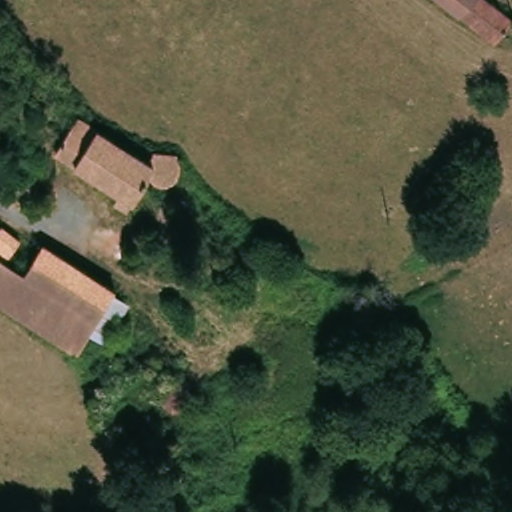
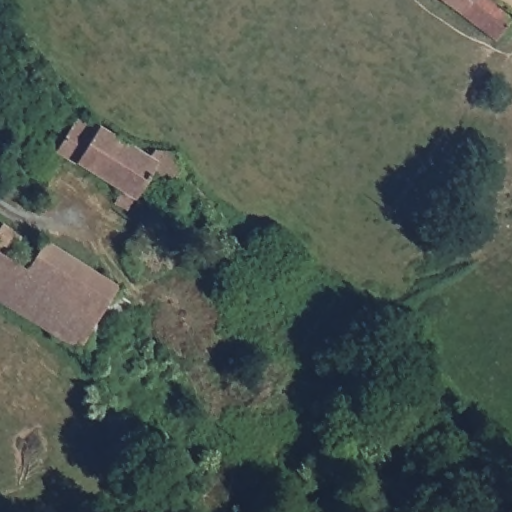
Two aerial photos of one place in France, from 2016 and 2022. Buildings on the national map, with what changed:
unchanged [(512,14),(495,37),(446,0),(494,0),(512,14)]
unchanged [(74,128),(79,131),(85,122),(101,132),(109,137),(128,149),(139,155),(147,160),(154,152),(176,155),(177,157),(178,160),(180,165),(179,170),(176,176),(173,179),(168,181),(160,181),(157,186),(152,194),(144,207),(138,217),(131,213),(125,210),(127,207),(132,199),(110,185),(102,181),(75,164),(72,162),(55,152),(44,144),(57,123),(68,131),(71,126),(74,128)]
unchanged [(20,239),(4,258),(20,271),(42,243),(115,289),(77,350),(38,326),(0,303),(0,228),(2,225),(20,239)]

